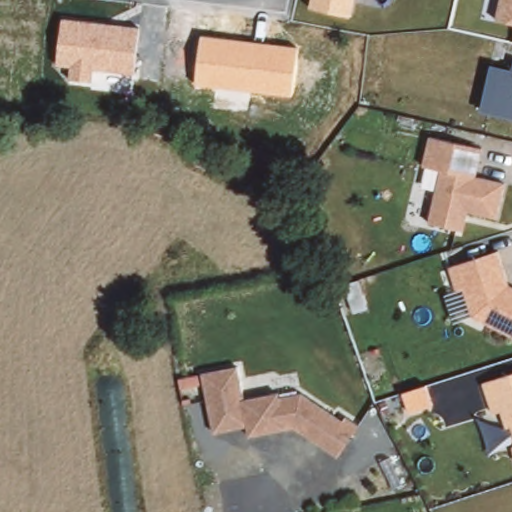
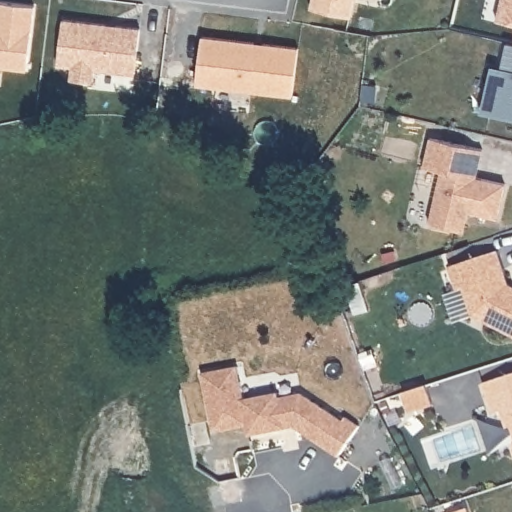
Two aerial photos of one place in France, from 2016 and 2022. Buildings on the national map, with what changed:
unchanged [(309,8),(311,0),(354,0),(351,18),(309,8)]
unchanged [(503,0),(512,0),(512,23),(499,20),(503,0)]
new [(25,70),(0,67),(0,1),(32,5),(25,70)]
unchanged [(93,70),(93,82),(69,79),(70,66),(57,65),(62,19),(139,28),(133,75),(93,70)]
unchanged [(196,84),(202,36),(297,47),(291,96),(196,84)]
unchanged [(492,64),(512,68),(512,121),(480,113),(492,64)]
unchanged [(484,148),(479,177),(505,183),(498,219),(470,212),(463,231),(430,221),(439,171),(424,163),(430,135),(484,148)]
unchanged [(509,283),(512,285),(512,334),(477,315),(466,286),(459,286),(451,267),(500,249),(509,283)]
unchanged [(237,367),(245,399),(282,392),(283,395),(304,390),(343,419),(346,413),(361,424),(340,461),(296,427),(250,437),(248,426),(215,434),(202,372),(237,367)]
unchanged [(512,425),(505,409),(495,409),(484,382),(512,373),(512,425)]
new [(416,380),(422,400),(398,407),(392,388),(416,380)]

